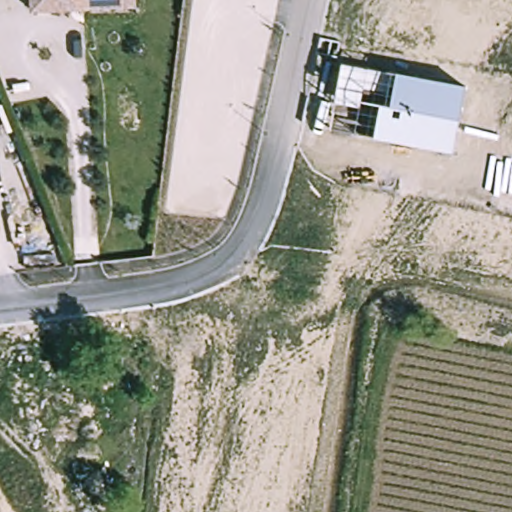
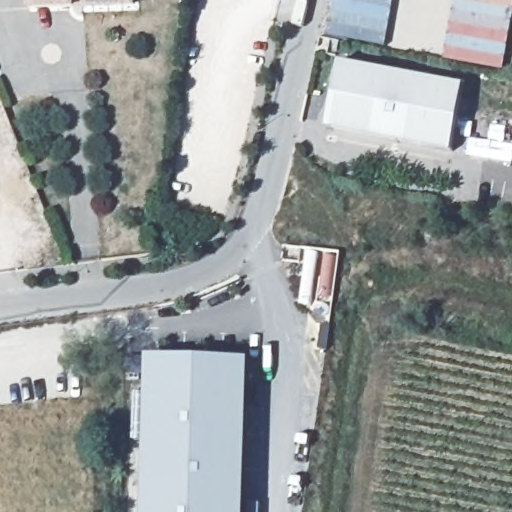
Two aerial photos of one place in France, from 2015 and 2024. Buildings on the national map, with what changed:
unchanged [(28,3),(27,0),(70,0),(28,3)]
new [(504,71),(444,59),(456,0),(512,0),(512,26),(504,71)]
unchanged [(463,86),(451,153),(329,129),(339,63),(463,86)]
new [(468,152),(470,138),(512,145),(512,160),(468,152)]
new [(247,512),(143,512),(148,357),(252,361),(247,512)]

